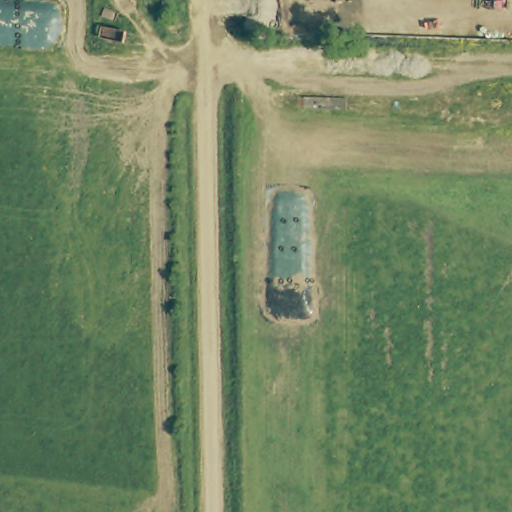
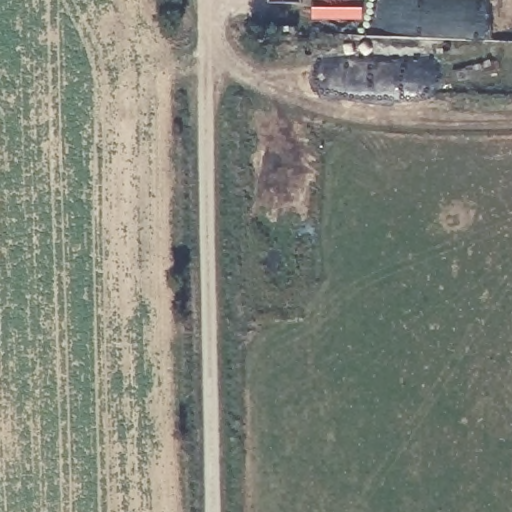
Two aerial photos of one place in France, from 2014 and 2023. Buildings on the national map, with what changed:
[]

